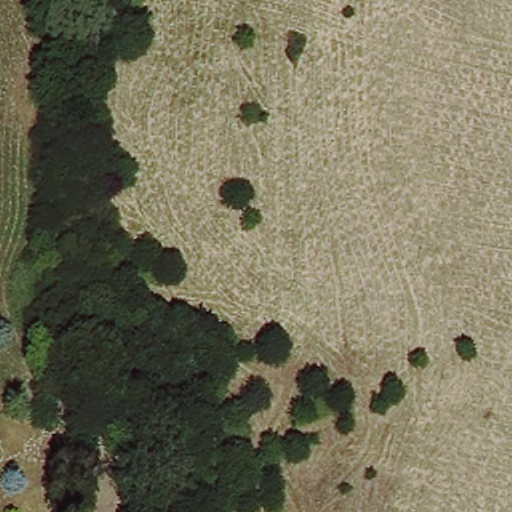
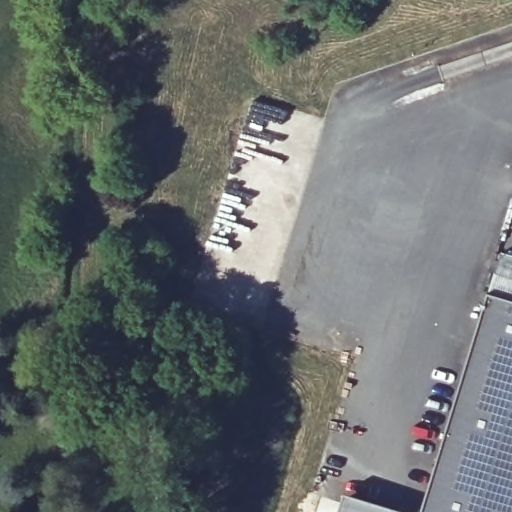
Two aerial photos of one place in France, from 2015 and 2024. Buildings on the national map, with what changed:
new [(500,253),(512,257),(512,300),(487,292),(500,253)]
new [(420,512),(487,292),(512,300),(512,512),(420,512)]

